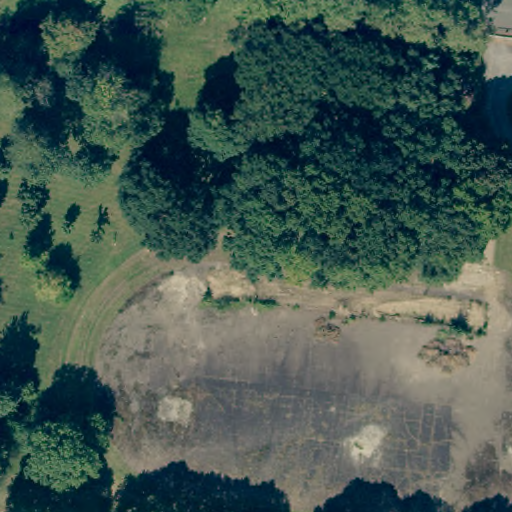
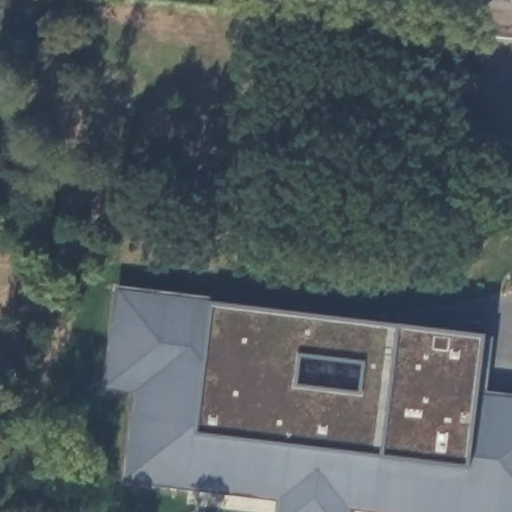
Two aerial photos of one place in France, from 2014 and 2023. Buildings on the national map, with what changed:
new [(122,484),(132,395),(104,392),(114,287),(214,298),(215,304),(397,326),(486,336),(494,338),(487,393),(512,396),(512,512),(276,512),(277,503),(122,484)]

